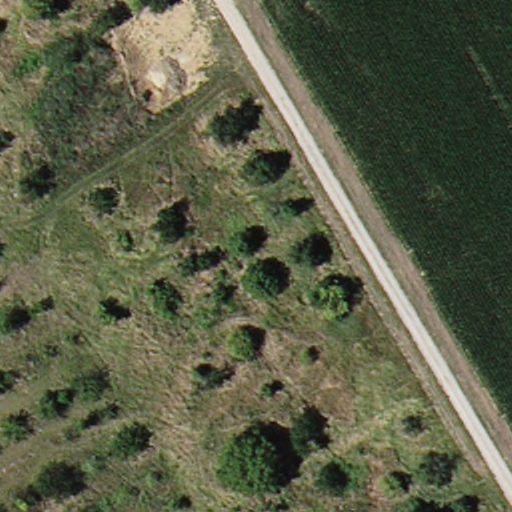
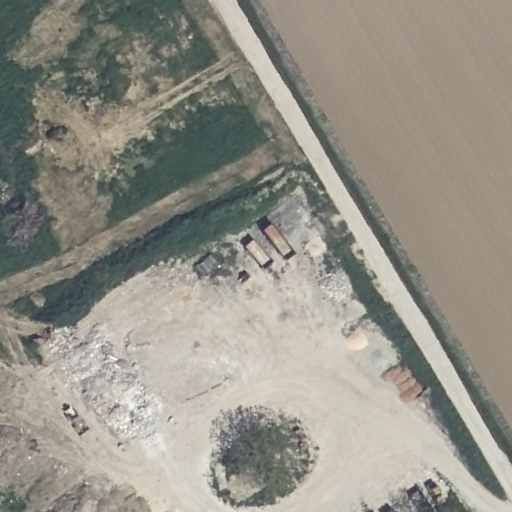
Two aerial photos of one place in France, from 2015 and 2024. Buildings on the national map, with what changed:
[]

